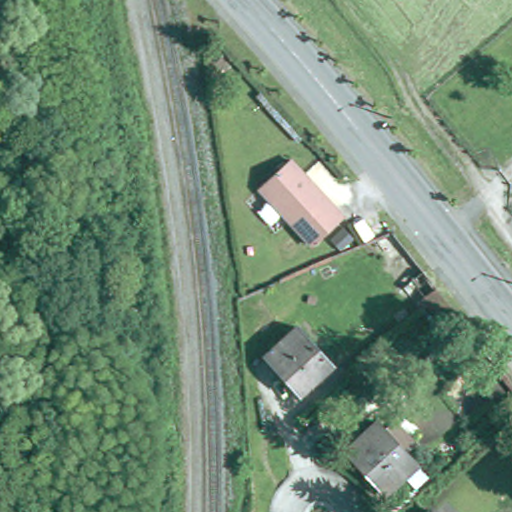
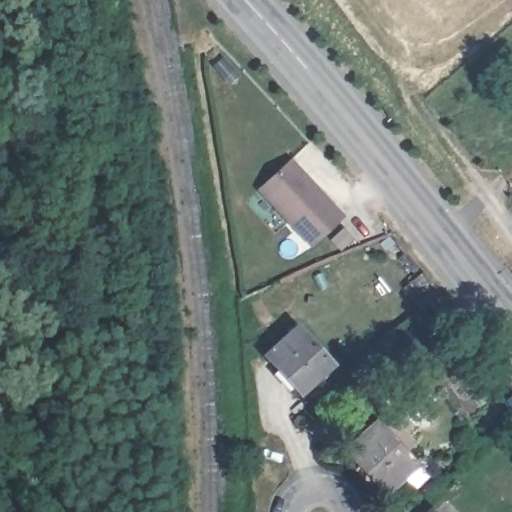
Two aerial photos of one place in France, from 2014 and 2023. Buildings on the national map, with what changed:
unchanged [(261,187),(291,159),(344,216),(314,244),(261,187)]
unchanged [(392,230),(421,266),(413,273),(403,261),(397,267),(372,239),(392,230)]
unchanged [(436,327),(424,311),(418,316),(398,289),(404,285),(424,270),(443,294),(456,310),(436,327)]
unchanged [(267,354),(299,325),(333,364),(301,392),(267,354)]
unchanged [(379,422),(416,464),(386,491),(349,449),(379,422)]
unchanged [(438,504),(445,512),(430,512),(438,504)]

